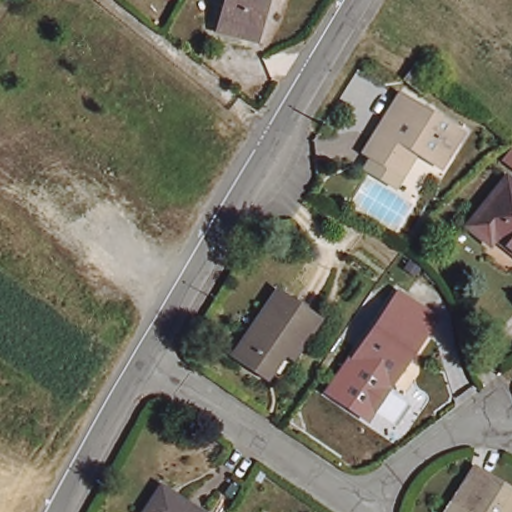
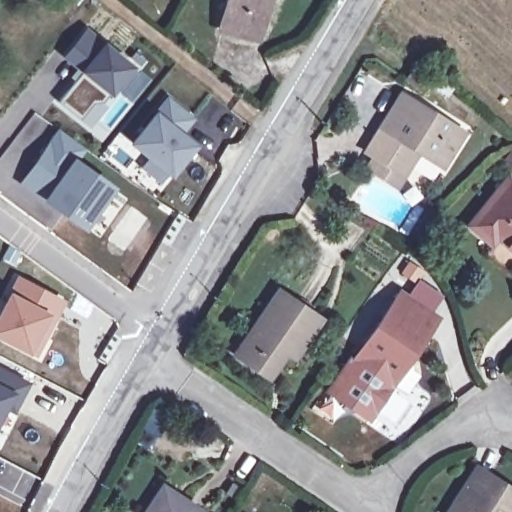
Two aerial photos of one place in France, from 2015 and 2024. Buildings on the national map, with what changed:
unchanged [(227,5),(228,0),(270,0),(266,15),(264,14),(258,40),(223,31),(230,5),(227,5)]
new [(100,116),(90,129),(80,121),(57,102),(67,91),(82,71),(66,57),(87,31),(136,71),(119,92),(115,89),(102,103),(107,107),(100,116)]
unchanged [(417,62),(435,76),(423,90),(406,77),(417,62)]
unchanged [(362,167),(369,156),(361,150),(396,94),(458,132),(437,166),(413,151),(391,185),(362,167)]
new [(190,120),(178,135),(193,146),(173,170),(135,141),(167,101),(190,120)]
new [(60,131),(83,147),(75,162),(111,189),(108,192),(83,227),(23,183),(48,149),(60,131)]
unchanged [(493,242),(471,225),(510,177),(512,179),(512,247),(498,236),(493,242)]
new [(68,301),(40,361),(0,339),(0,314),(18,272),(68,301)]
unchanged [(286,352),(270,377),(236,353),(280,290),(321,318),(300,349),(294,357),(286,352)]
unchanged [(354,359),(400,292),(437,317),(390,383),(372,371),(354,359)]
new [(365,419),(325,391),(349,356),(354,359),(372,371),(390,383),(365,419)]
new [(32,383),(16,415),(3,408),(0,414),(0,366),(32,383)]
unchanged [(512,512),(450,512),(478,467),(512,489),(512,512)]
unchanged [(202,511),(202,512),(147,512),(163,485),(202,511)]

